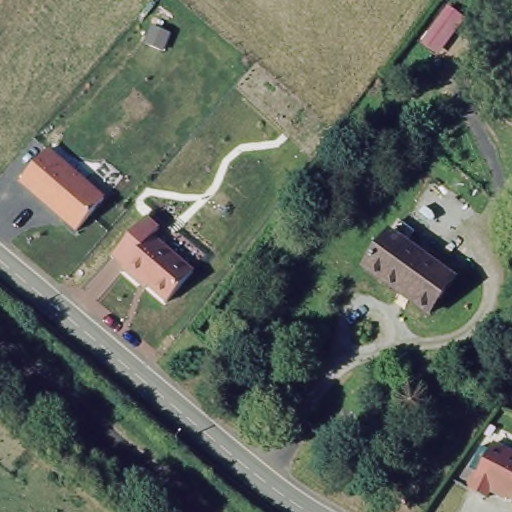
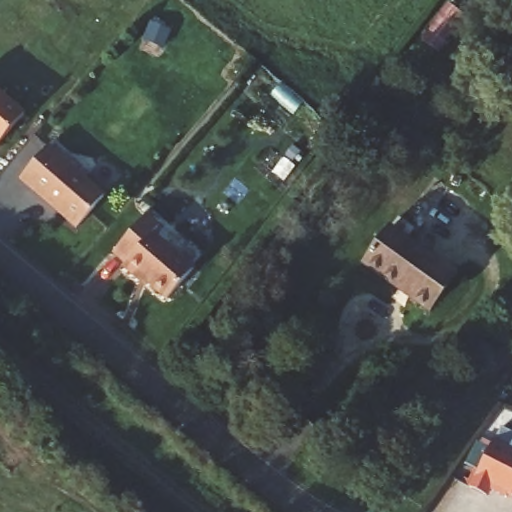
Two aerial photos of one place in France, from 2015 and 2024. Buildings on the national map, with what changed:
unchanged [(446,14),(457,22),(431,58),(419,49),(446,14)]
new [(23,114),(0,140),(0,93),(23,114)]
unchanged [(103,197),(73,229),(18,182),(48,148),(103,197)]
unchanged [(158,229),(153,236),(195,269),(168,302),(109,257),(145,215),(158,229)]
unchanged [(389,227),(457,274),(432,310),(364,263),(389,227)]
unchanged [(512,443),(512,489),(496,481),(491,492),(476,484),(499,437),(512,443)]

